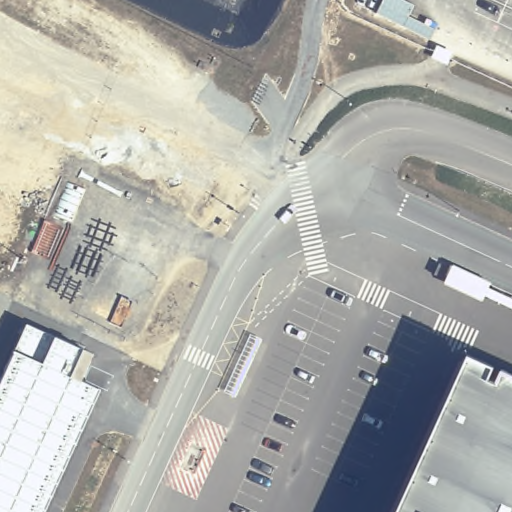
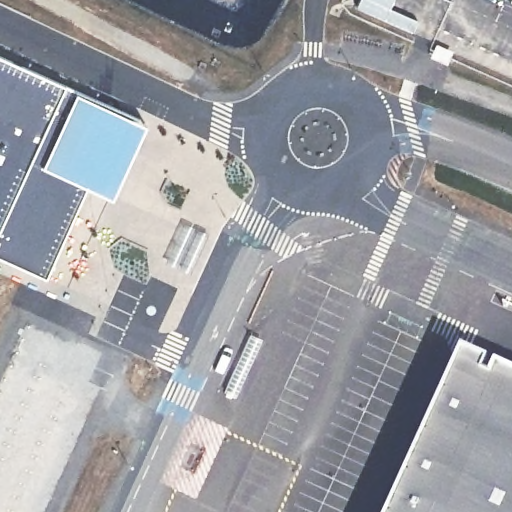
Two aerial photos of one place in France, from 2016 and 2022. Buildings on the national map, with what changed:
new [(144,122),(112,198),(82,185),(43,276),(0,257),(0,55),(74,90),(144,122)]
demolished [(107,380),(140,311),(172,327),(140,398),(107,380)]
unchanged [(26,322),(54,335),(94,353),(81,381),(99,387),(44,512),(0,512),(0,380),(14,350),(26,322)]
unchanged [(512,378),(512,512),(395,512),(465,356),(512,378)]

